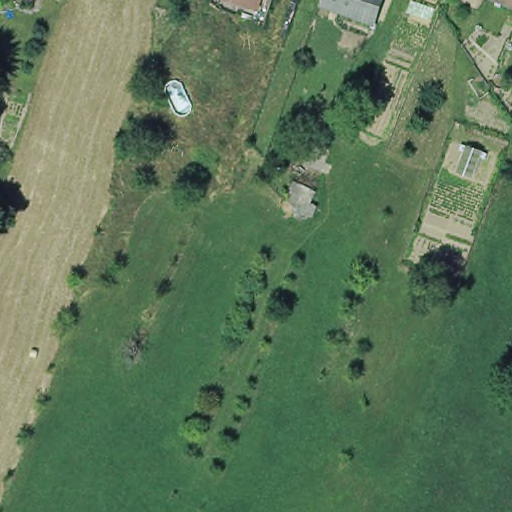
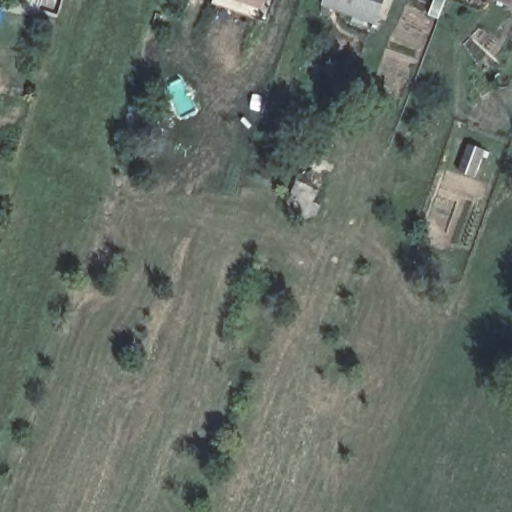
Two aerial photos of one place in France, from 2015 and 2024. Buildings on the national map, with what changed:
unchanged [(215,2),(211,1),(211,0),(257,0),(252,15),(240,10),(215,2)]
unchanged [(326,1),(327,0),(385,0),(378,19),(365,14),(345,7),(326,1)]

